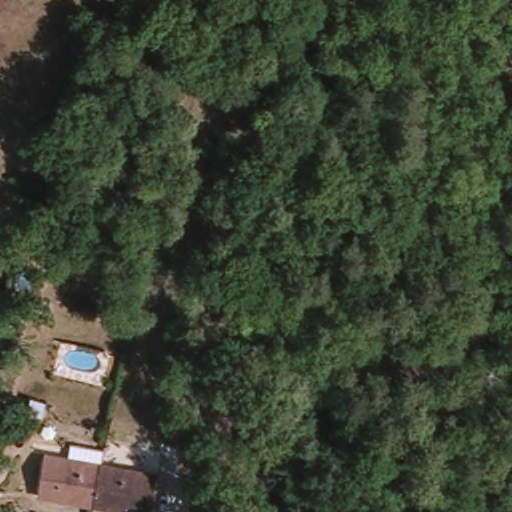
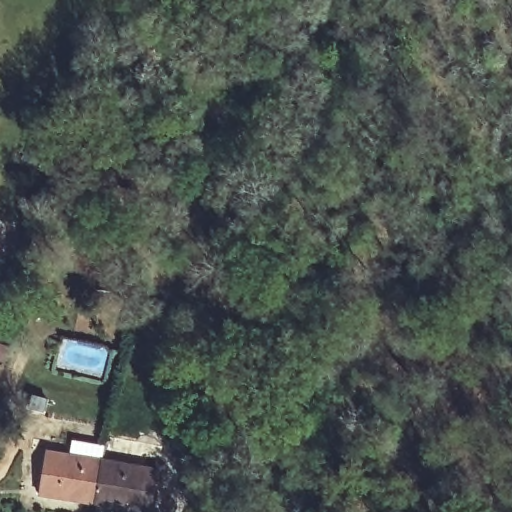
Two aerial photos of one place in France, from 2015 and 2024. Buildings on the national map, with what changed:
unchanged [(38,493),(47,451),(100,464),(154,476),(150,496),(147,512),(129,512),(94,505),(38,493)]

